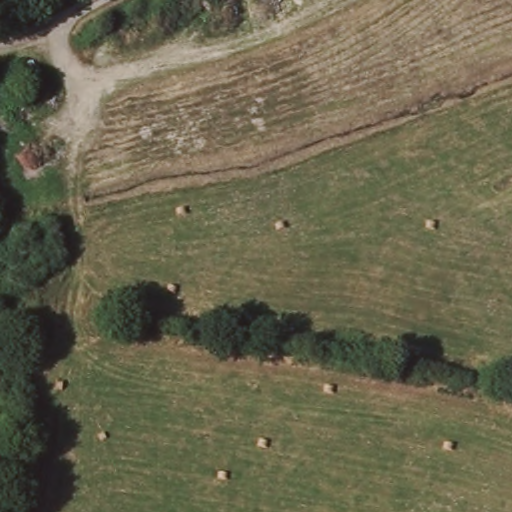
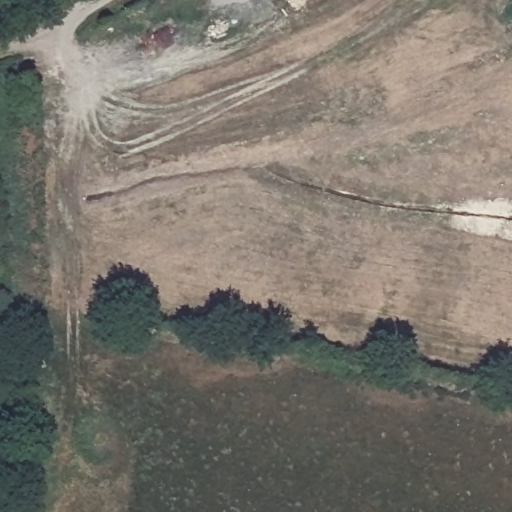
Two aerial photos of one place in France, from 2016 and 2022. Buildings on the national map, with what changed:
[]

